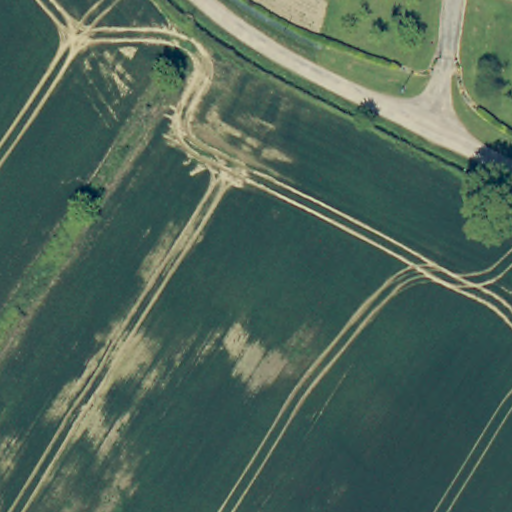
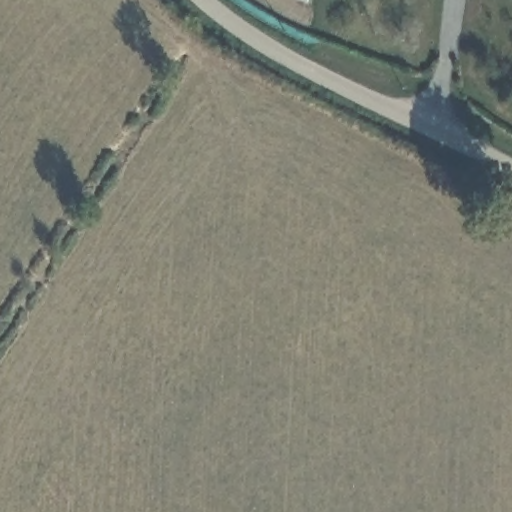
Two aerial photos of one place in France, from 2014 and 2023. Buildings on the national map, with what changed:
[]

